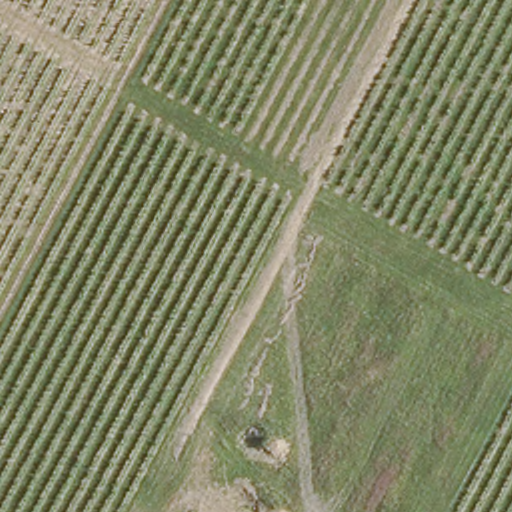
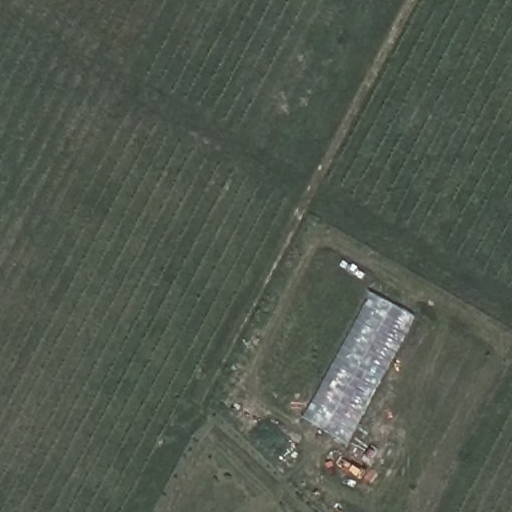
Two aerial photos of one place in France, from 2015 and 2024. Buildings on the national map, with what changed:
new [(374,294),(417,317),(349,445),(306,419),(374,294)]

